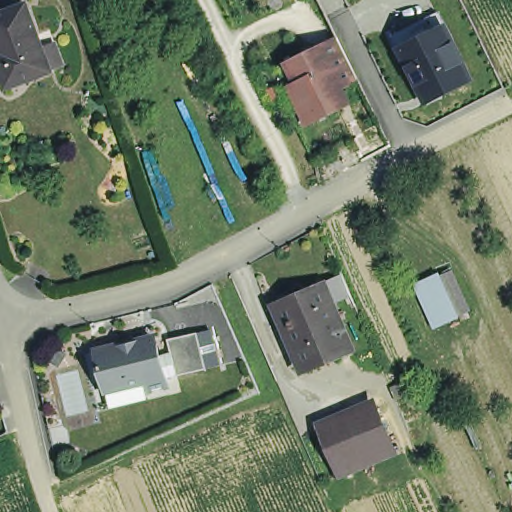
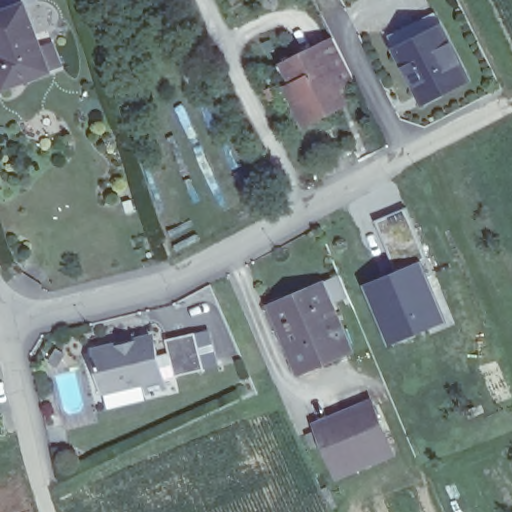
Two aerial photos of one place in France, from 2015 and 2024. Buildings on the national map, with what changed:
unchanged [(0,60),(3,59),(0,49),(0,9),(23,0),(24,0),(49,63),(5,80),(0,67),(0,60)]
unchanged [(445,29),(470,83),(423,104),(399,50),(445,29)]
unchanged [(335,41),(357,85),(333,97),(311,54),(335,41)]
unchanged [(333,97),(341,113),(305,130),(275,70),(311,54),(333,97)]
new [(418,262),(442,325),(384,349),(360,287),(418,262)]
demolished [(413,285),(453,267),(470,312),(432,330),(413,285)]
unchanged [(345,351),(295,371),(285,347),(295,343),(279,304),(319,287),(345,351)]
unchanged [(102,388),(92,355),(150,340),(155,358),(167,355),(164,343),(194,335),(204,372),(175,380),(172,371),(160,375),(163,390),(145,394),(143,386),(109,395),(107,387),(102,388)]
unchanged [(355,465),(342,470),(323,427),(375,404),(390,434),(395,447),(355,465)]

